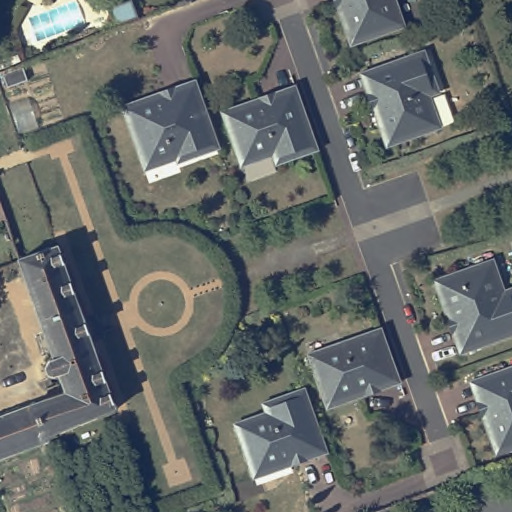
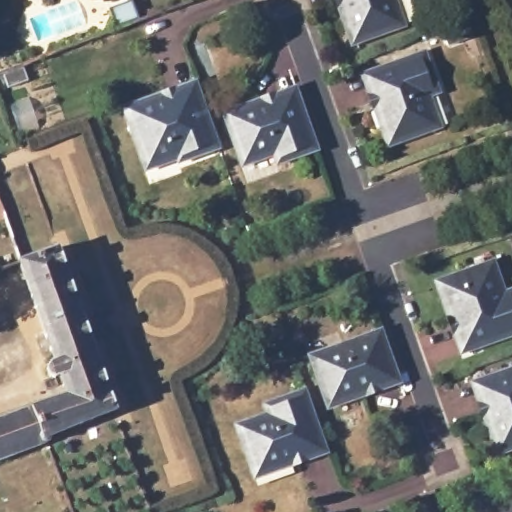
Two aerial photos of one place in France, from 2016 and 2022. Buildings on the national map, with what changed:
unchanged [(126,0),(131,0),(138,17),(114,26),(107,7),(126,0)]
unchanged [(356,43),(350,45),(334,0),(394,0),(404,26),(398,28),(356,43)]
unchanged [(434,130),(392,145),(386,146),(360,74),(366,71),(423,51),(438,92),(429,96),(440,127),(434,130)]
unchanged [(15,69),(22,66),(28,83),(8,90),(1,73),(15,69)]
unchanged [(142,165),(124,112),(121,107),(194,80),(196,86),(197,86),(197,87),(218,148),(177,162),(176,159),(144,170),(142,165)]
unchanged [(239,160),(224,117),(222,112),(295,86),(295,89),(297,92),(317,150),(276,164),(272,155),(241,165),(239,160)]
unchanged [(0,221),(0,200),(6,219),(0,221)]
unchanged [(51,435),(49,438),(49,439),(49,440),(48,440),(47,441),(46,442),(44,442),(0,459),(0,417),(30,405),(66,395),(59,375),(53,377),(48,375),(45,368),(50,361),(54,360),(19,260),(21,259),(56,247),(114,408),(51,435)]
unchanged [(434,280),(440,278),(487,262),(492,260),(504,291),(512,288),(512,335),(466,351),(460,353),(434,280)]
unchanged [(400,392),(327,418),(325,412),(305,356),(303,350),(337,338),(376,325),(398,386),(399,390),(400,392)]
unchanged [(501,453),(496,455),(470,382),(476,380),(512,367),(512,449),(501,453)]
unchanged [(274,470),(253,478),(251,472),(236,430),(234,424),(266,413),(263,403),(304,389),(314,418),(320,435),(324,446),(326,452),(274,470)]

